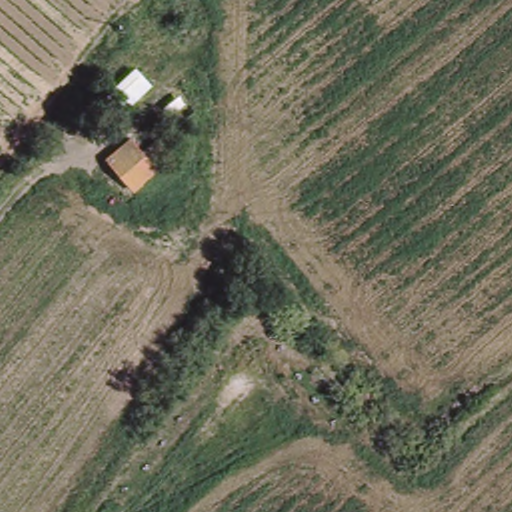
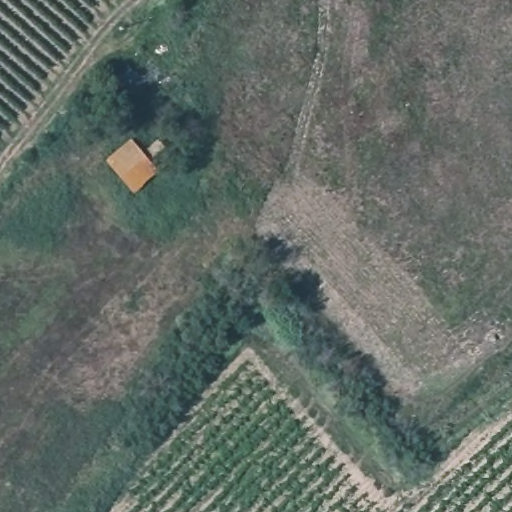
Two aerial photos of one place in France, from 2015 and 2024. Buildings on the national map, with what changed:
unchanged [(154,169),(132,188),(110,162),(132,142),(154,169)]

